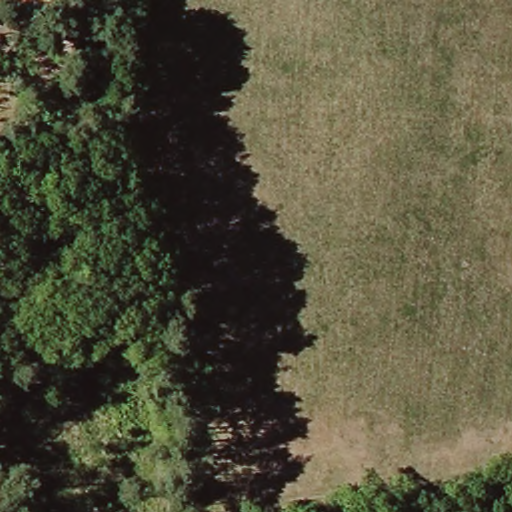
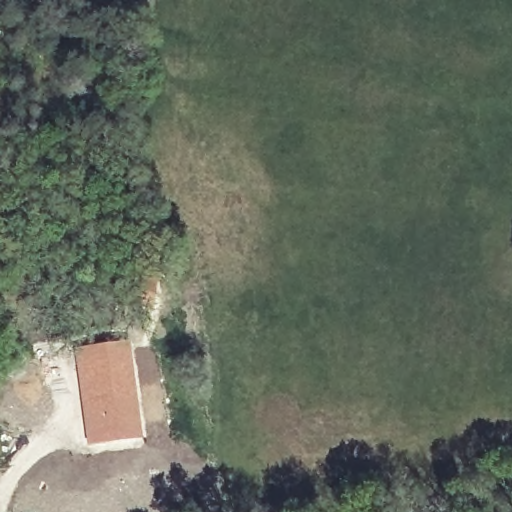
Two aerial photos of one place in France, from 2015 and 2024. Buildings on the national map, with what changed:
new [(131,340),(144,440),(87,446),(74,348),(131,340)]

